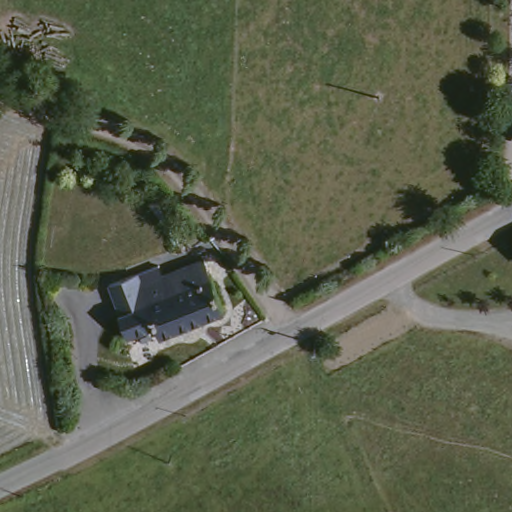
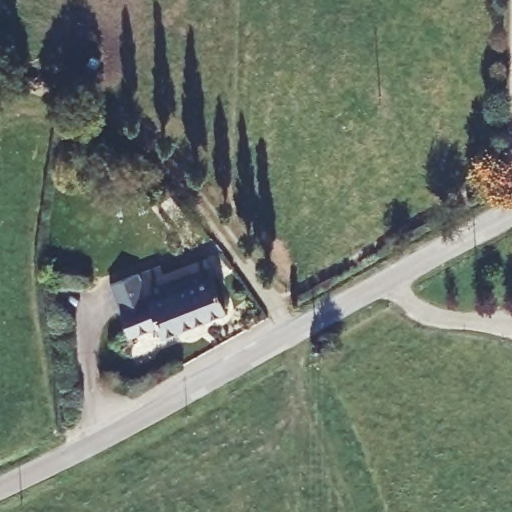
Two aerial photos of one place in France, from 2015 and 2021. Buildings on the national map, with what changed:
unchanged [(147,304),(129,310),(131,315),(136,331),(125,335),(122,323),(119,313),(115,302),(108,285),(125,278),(144,271),(159,266),(162,276),(205,261),(211,280),(147,304)]
unchanged [(223,313),(159,336),(155,325),(136,331),(131,315),(129,310),(147,304),(211,280),(223,313)]

